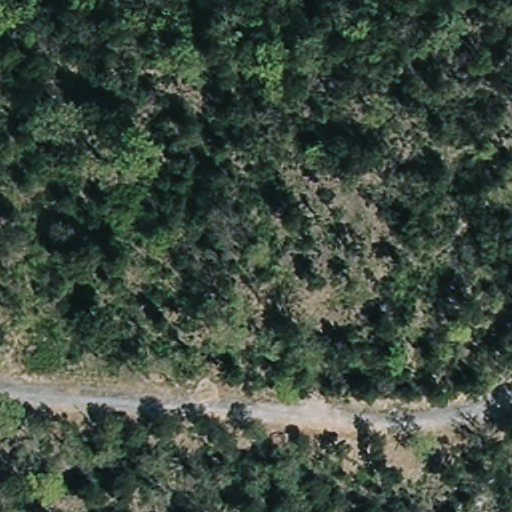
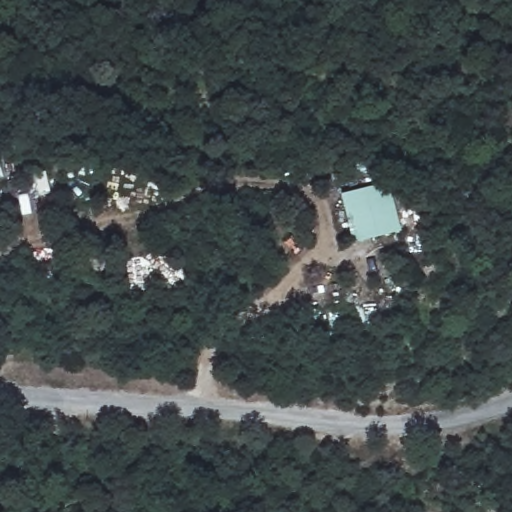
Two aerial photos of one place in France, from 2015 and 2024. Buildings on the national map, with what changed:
new [(356,244),(343,195),(392,182),(404,231),(356,244)]

